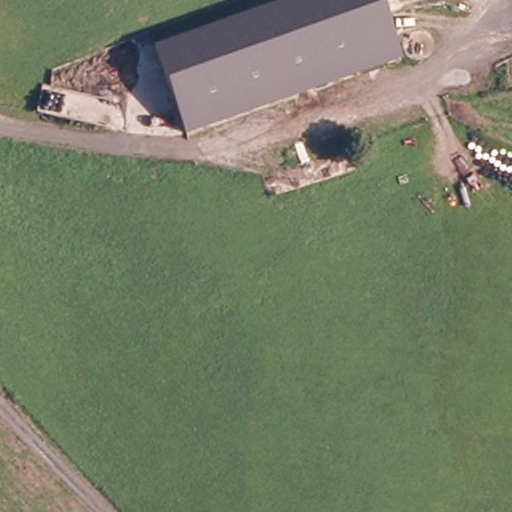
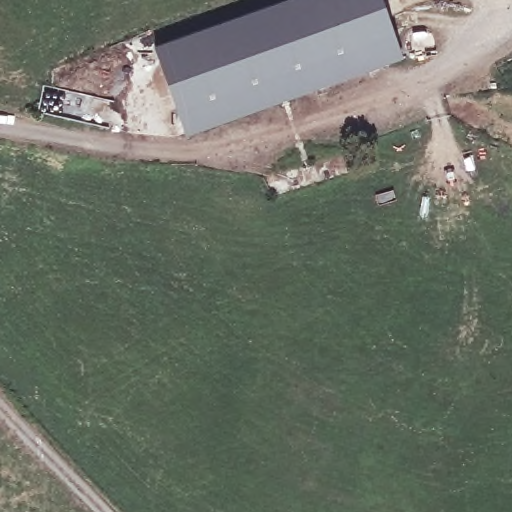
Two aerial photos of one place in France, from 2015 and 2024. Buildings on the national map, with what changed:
unchanged [(271,0),(381,0),(400,47),(190,130),(155,46),(271,0)]

